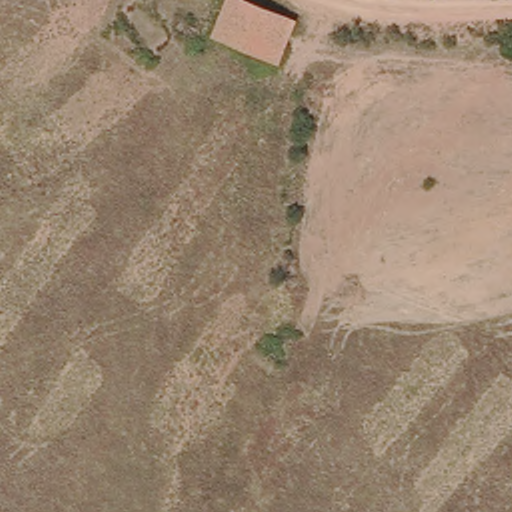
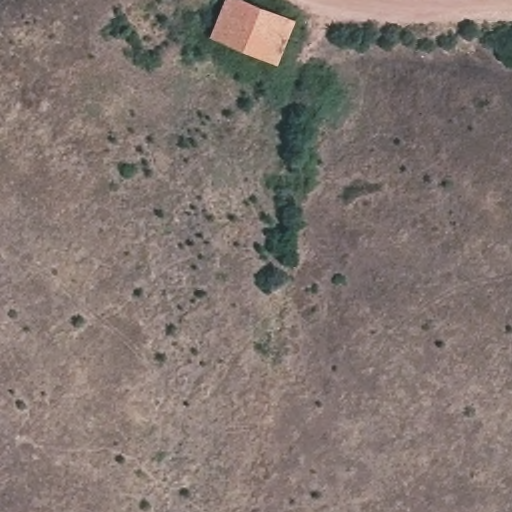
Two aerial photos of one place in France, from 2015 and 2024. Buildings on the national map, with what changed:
unchanged [(278,63),(213,36),(227,0),(249,0),(295,18),(278,63)]

